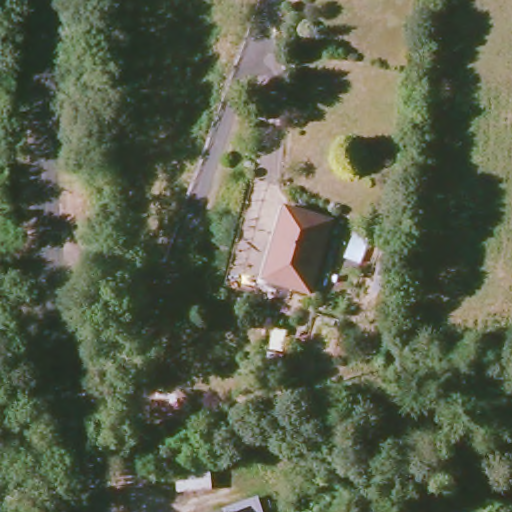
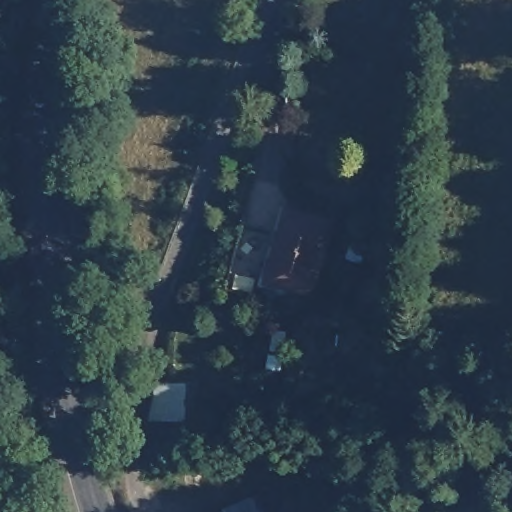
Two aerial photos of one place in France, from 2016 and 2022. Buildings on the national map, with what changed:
unchanged [(332,221),(308,295),(266,285),(290,210),(332,221)]
unchanged [(190,421),(156,426),(162,389),(187,384),(190,421)]
unchanged [(171,492),(168,467),(198,465),(201,489),(171,492)]
unchanged [(229,509),(260,496),(265,512),(230,512),(229,509)]

